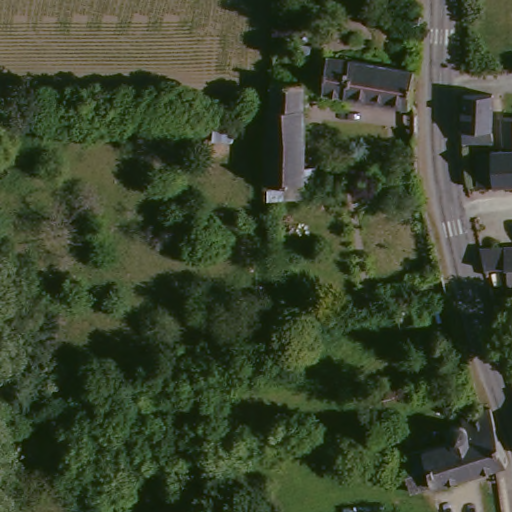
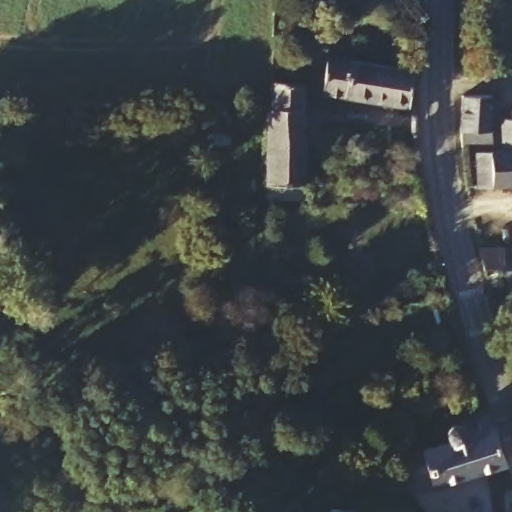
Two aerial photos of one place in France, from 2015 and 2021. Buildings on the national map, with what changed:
unchanged [(410,64),(409,102),(323,93),(328,57),(410,64)]
unchanged [(304,167),(316,167),(316,180),(304,180),(304,184),(265,186),(263,186),(261,139),(262,105),(262,102),(263,99),(266,99),(267,82),(302,82),(304,167)]
unchanged [(472,190),(468,156),(457,156),(455,100),(487,98),(488,105),(493,152),(503,152),(502,124),(512,123),(512,189),(472,190)]
unchanged [(503,269),(493,270),(476,270),(473,251),(512,249),(512,269),(503,269)]
unchanged [(503,287),(503,269),(512,269),(512,287),(503,287)]
unchanged [(428,447),(442,444),(441,434),(457,427),(457,422),(479,414),(488,413),(504,456),(505,466),(497,468),(408,492),(398,455),(428,447)]

